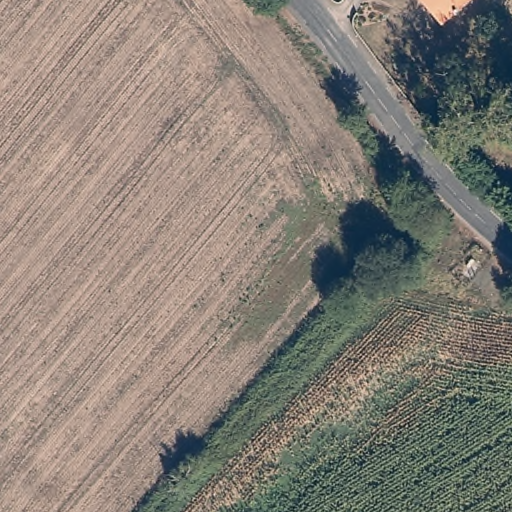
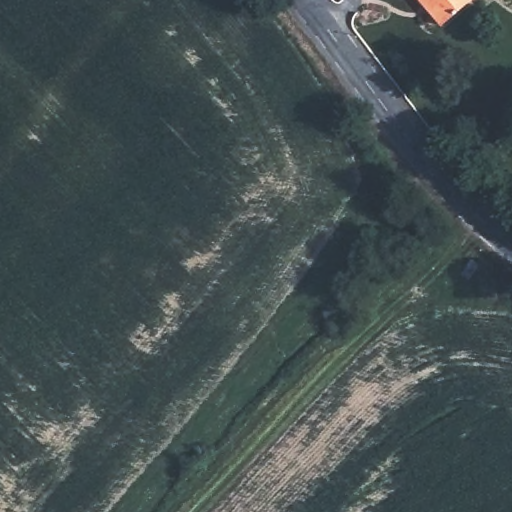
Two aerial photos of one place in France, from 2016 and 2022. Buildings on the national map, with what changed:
unchanged [(436,27),(414,0),(470,0),(436,27)]

